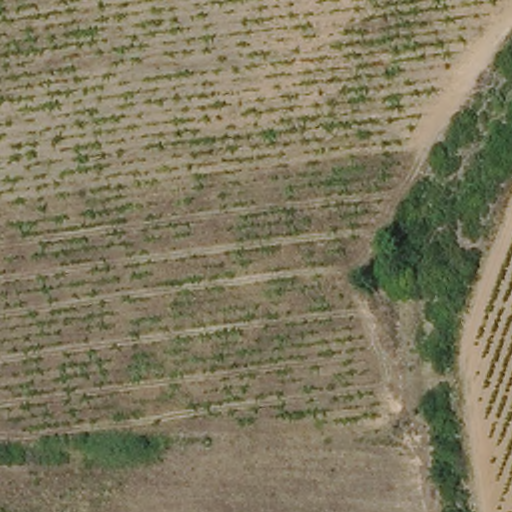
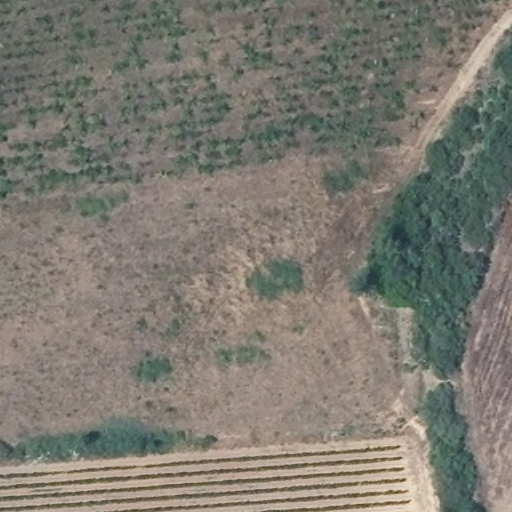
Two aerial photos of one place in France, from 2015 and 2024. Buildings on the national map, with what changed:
[]

